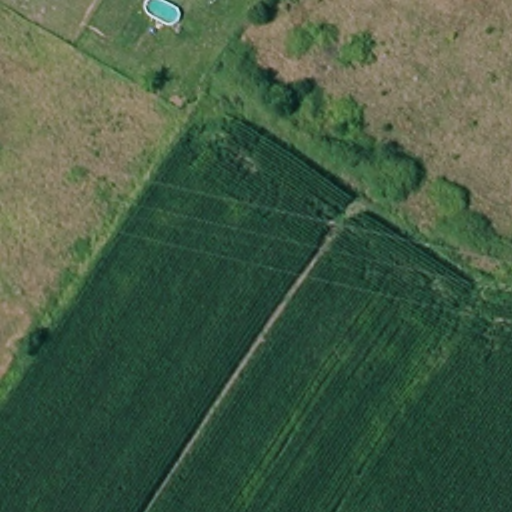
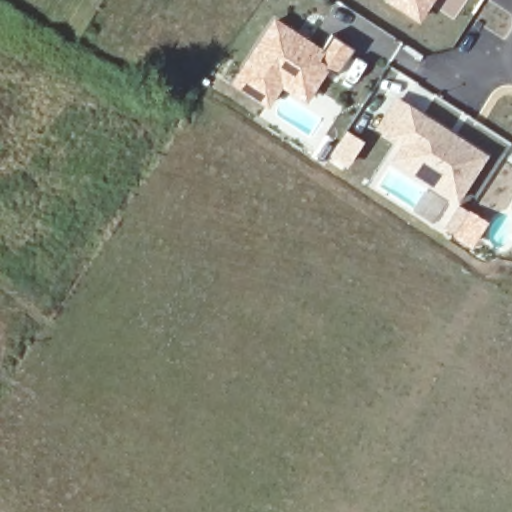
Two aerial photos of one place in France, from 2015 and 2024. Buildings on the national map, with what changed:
new [(423,0),(415,12),(397,0),(423,0)]
new [(327,70),(306,104),(283,87),(268,109),(229,82),(272,16),(323,49),(332,35),(352,47),(334,75),(327,70)]
new [(457,203),(390,161),(400,147),(375,127),(395,95),(488,156),(457,203)]

